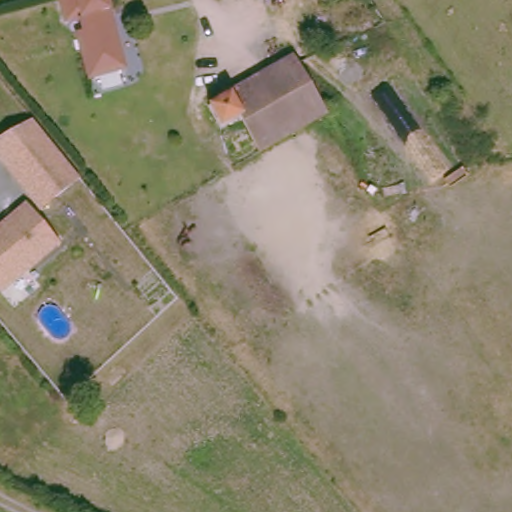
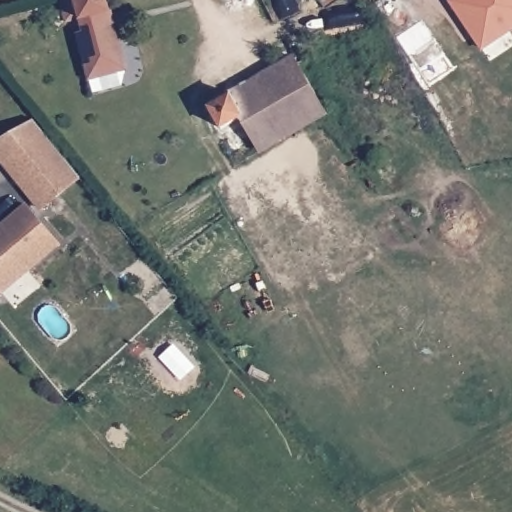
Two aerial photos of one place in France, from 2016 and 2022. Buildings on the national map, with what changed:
unchanged [(113,29),(124,67),(86,78),(73,32),(80,30),(76,17),(61,22),(55,0),(105,0),(113,29)]
new [(455,0),(512,0),(512,30),(482,50),(451,2),(455,0)]
unchanged [(249,125),(229,136),(213,110),(298,61),(334,117),(266,154),(249,125)]
unchanged [(0,155),(0,137),(34,119),(81,177),(43,208),(0,155)]
unchanged [(0,226),(27,204),(60,243),(29,270),(3,291),(0,288),(0,226)]

